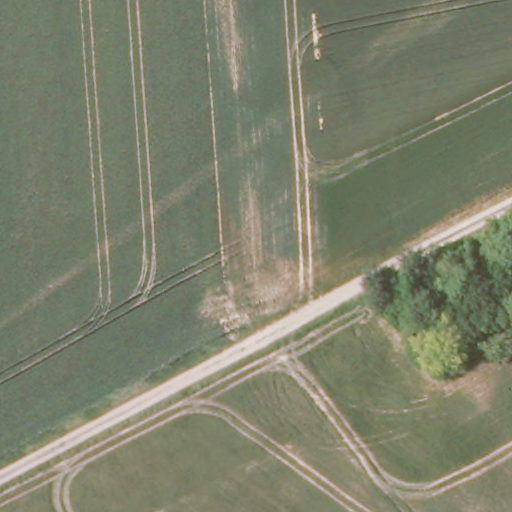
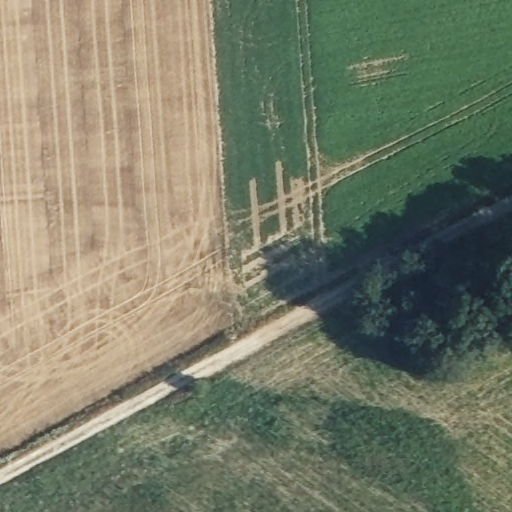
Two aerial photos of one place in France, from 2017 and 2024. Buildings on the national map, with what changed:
[]

